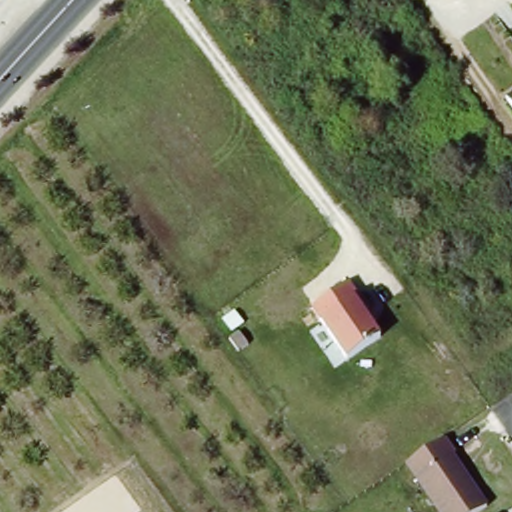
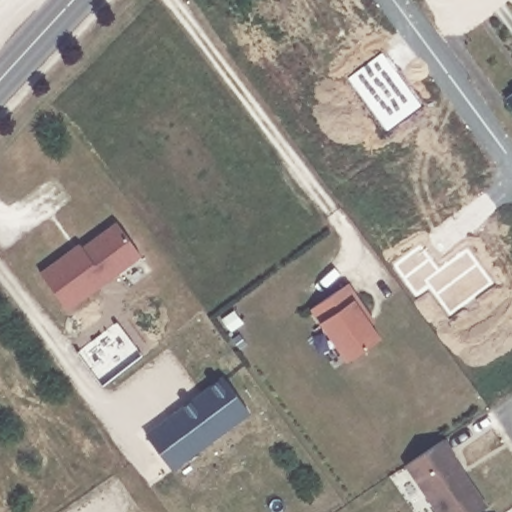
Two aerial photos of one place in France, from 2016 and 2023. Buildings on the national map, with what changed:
unchanged [(512,90),(512,103),(506,94),(512,90)]
new [(71,250),(74,254),(116,222),(142,256),(68,310),(40,273),(71,250)]
unchanged [(344,282),(379,332),(345,357),(319,322),(310,309),(344,282)]
new [(223,378),(249,412),(173,470),(146,435),(223,378)]
unchanged [(407,465),(448,440),(487,510),(484,512),(438,512),(407,465)]

